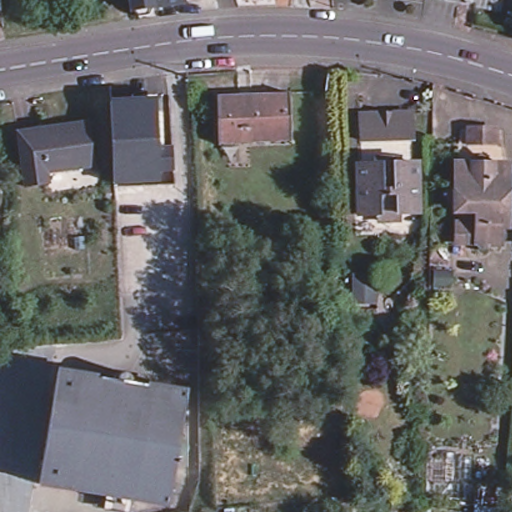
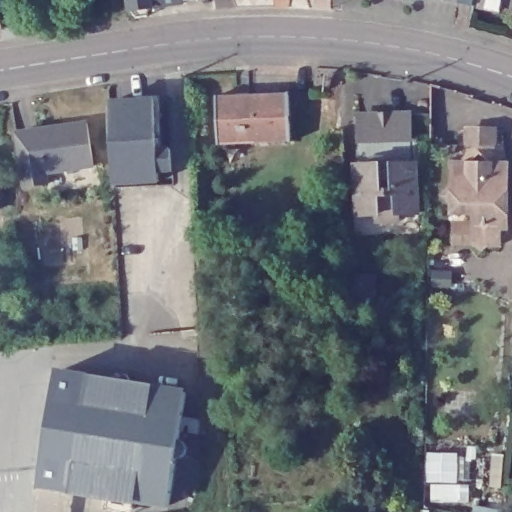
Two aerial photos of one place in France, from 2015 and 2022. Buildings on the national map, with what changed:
unchanged [(145,8),(142,18),(133,19),(127,11),(122,11),(120,0),(177,0),(177,3),(145,8)]
unchanged [(458,2),(443,0),(474,0),(473,4),(458,2)]
unchanged [(292,141),(217,143),(215,100),(290,98),(292,141)]
unchanged [(114,154),(112,108),(112,103),(127,102),(127,108),(159,106),(165,106),(167,148),(160,148),(160,151),(114,154)]
unchanged [(410,215),(401,215),(392,215),(392,221),(370,221),(371,214),(351,214),(350,164),(355,165),(356,115),(402,116),(406,116),(405,165),(410,165),(410,215)]
unchanged [(40,187),(18,190),(10,136),(80,126),(86,169),(38,176),(40,187)]
unchanged [(458,212),(448,202),(458,192),(458,172),(473,172),(473,166),(470,166),(470,138),(506,138),(506,161),(499,161),(499,168),(495,168),(495,173),(510,173),(510,234),(503,234),(504,252),(491,252),(485,259),(479,251),(458,251),(458,212)]
unchanged [(114,154),(160,151),(162,185),(115,187),(114,154)]
unchanged [(187,447),(188,450),(190,452),(190,455),(188,458),(187,460),(185,462),(182,463),(179,463),(178,464),(171,510),(45,489),(42,489),(45,472),(54,411),(55,405),(60,377),(115,386),(117,383),(118,380),(120,379),(123,378),(127,378),(129,379),(132,380),(133,383),(135,386),(135,389),(189,398),(188,402),(182,445),(185,446),(187,447)]

